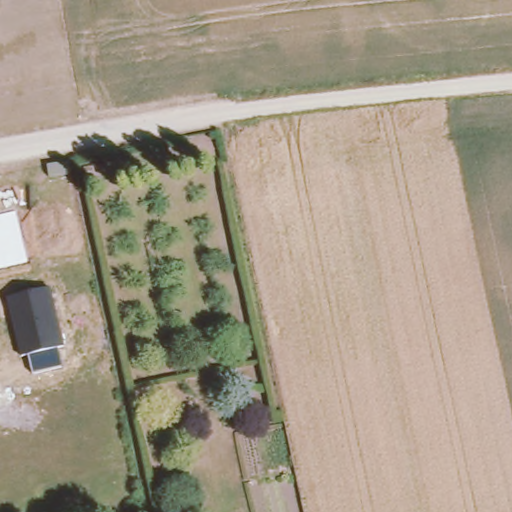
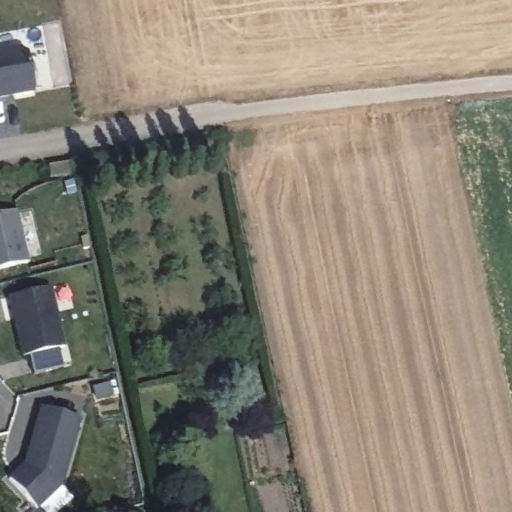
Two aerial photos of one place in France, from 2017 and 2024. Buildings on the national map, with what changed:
new [(30,89),(0,94),(0,51),(23,47),(30,89)]
unchanged [(68,175),(47,178),(45,167),(67,164),(68,175)]
unchanged [(30,267),(0,273),(0,215),(18,212),(30,267)]
unchanged [(65,347),(58,348),(63,367),(33,374),(28,355),(20,357),(6,298),(50,288),(65,347)]
new [(40,408),(79,419),(60,485),(62,487),(39,508),(9,477),(24,463),(40,408)]

